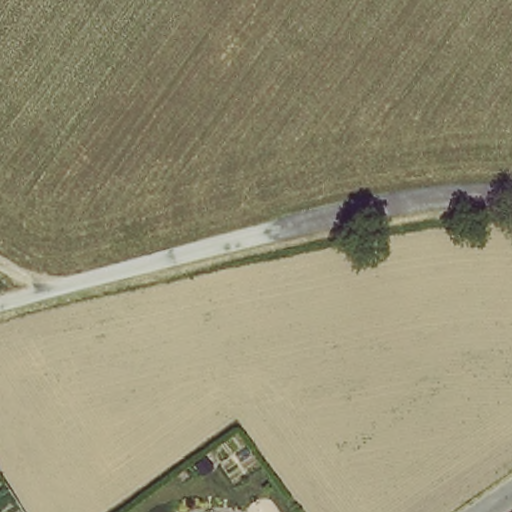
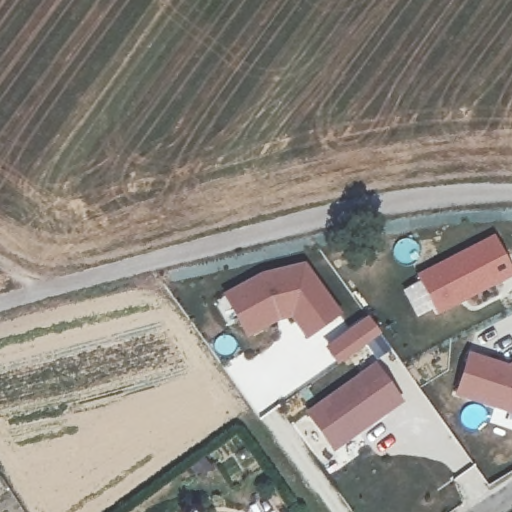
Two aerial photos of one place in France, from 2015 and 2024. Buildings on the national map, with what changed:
new [(495,234),(512,271),(512,276),(438,315),(417,275),(495,234)]
new [(223,292),(262,273),(305,263),(342,315),(307,339),(292,317),(278,320),(247,338),(223,292)]
new [(455,395),(469,352),(509,365),(512,363),(512,413),(511,414),(455,395)]
new [(306,412),(375,362),(403,402),(334,451),(306,412)]

